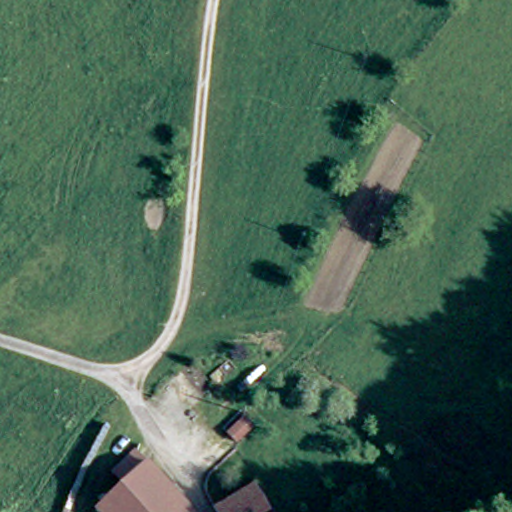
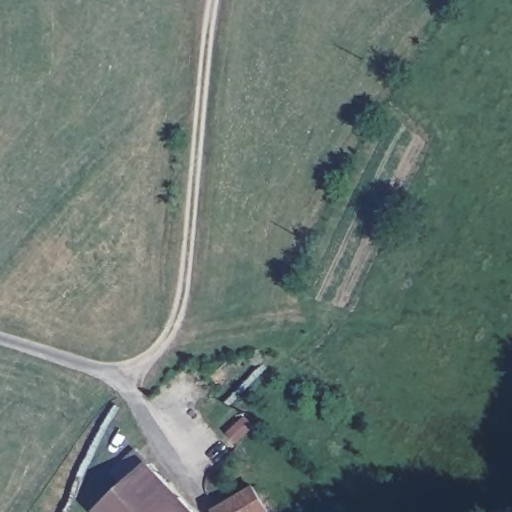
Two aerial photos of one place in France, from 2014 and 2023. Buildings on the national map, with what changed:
unchanged [(122,484),(110,471),(133,448),(146,462),(193,512),(98,512),(95,508),(122,484)]
unchanged [(252,487),(267,510),(264,512),(216,512),(215,510),(252,487)]

